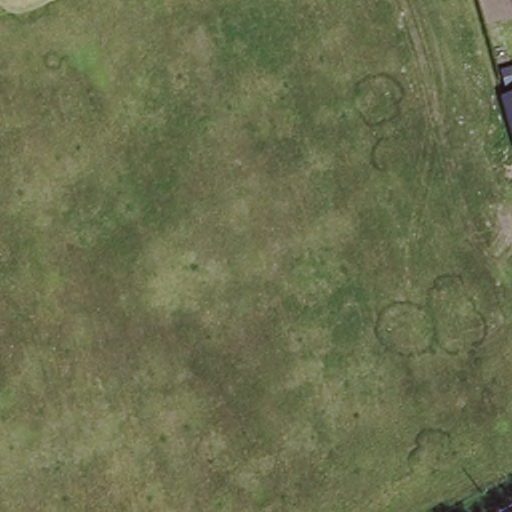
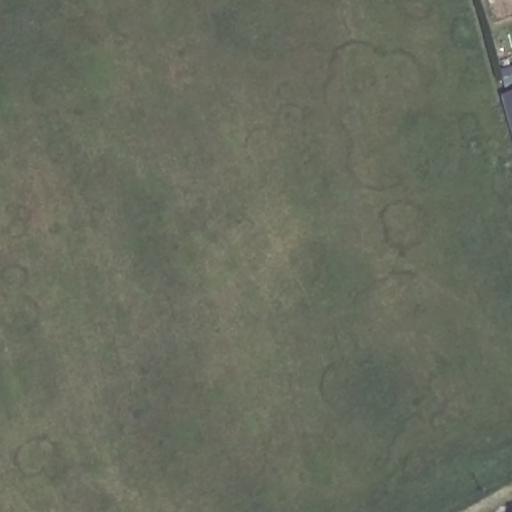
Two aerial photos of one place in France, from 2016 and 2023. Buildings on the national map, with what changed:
unchanged [(498,96),(507,93),(500,70),(512,67),(512,140),(498,96)]

